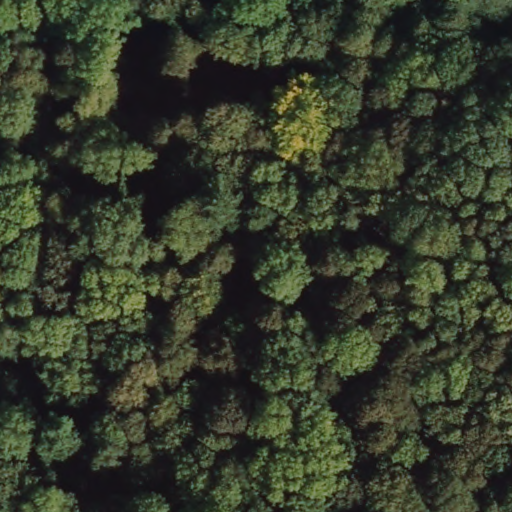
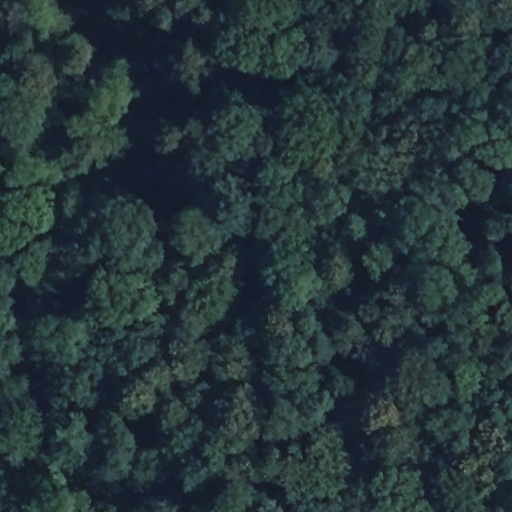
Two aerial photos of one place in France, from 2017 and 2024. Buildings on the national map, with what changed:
unchanged [(220,150),(232,146),(237,164),(226,168),(220,150)]

